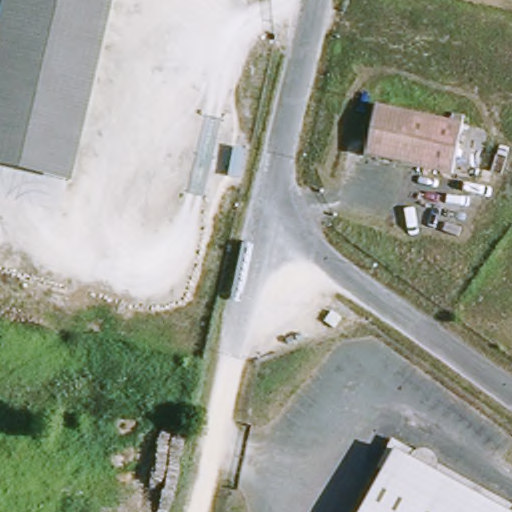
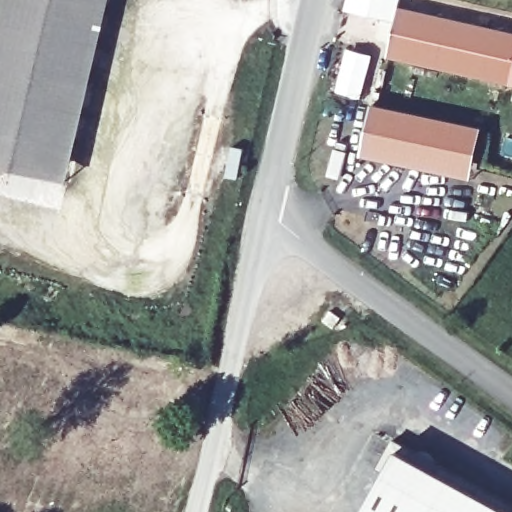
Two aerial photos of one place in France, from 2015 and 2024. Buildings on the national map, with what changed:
unchanged [(9,0),(90,0),(115,6),(76,159),(70,182),(32,173),(0,165),(0,35),(9,0)]
unchanged [(90,0),(117,0),(115,6),(90,0)]
new [(400,7),(512,32),(512,85),(389,59),(400,7)]
unchanged [(370,157),(381,107),(473,127),(463,177),(370,157)]
unchanged [(323,320),(310,311),(320,298),(333,308),(323,320)]
unchanged [(512,506),(512,512),(365,512),(384,476),(376,472),(391,442),(421,458),(429,463),(512,506)]

